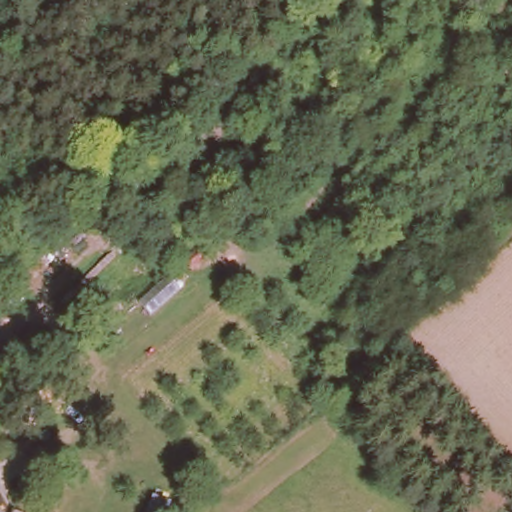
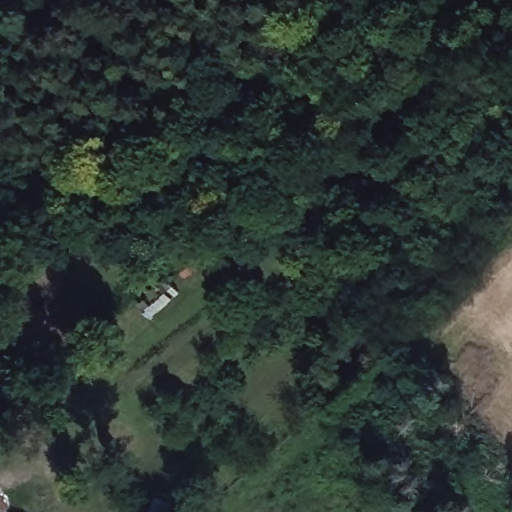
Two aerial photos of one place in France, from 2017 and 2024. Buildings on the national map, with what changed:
unchanged [(177,505),(180,489),(197,493),(192,510),(177,505)]
unchanged [(7,512),(7,509),(26,512),(7,512)]

